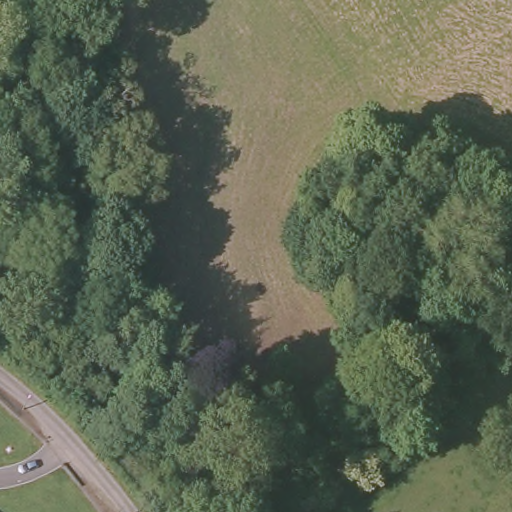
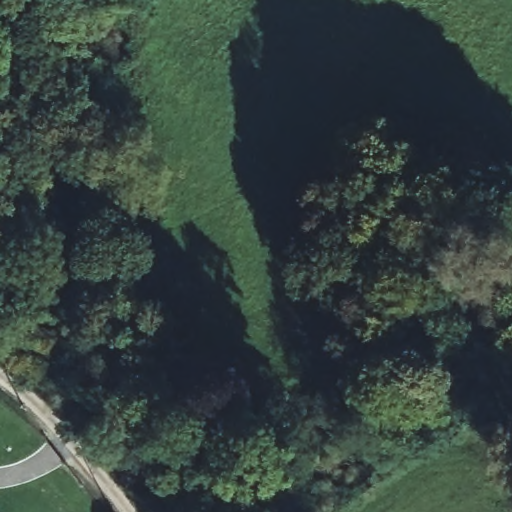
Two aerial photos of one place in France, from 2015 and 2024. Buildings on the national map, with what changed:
[]

